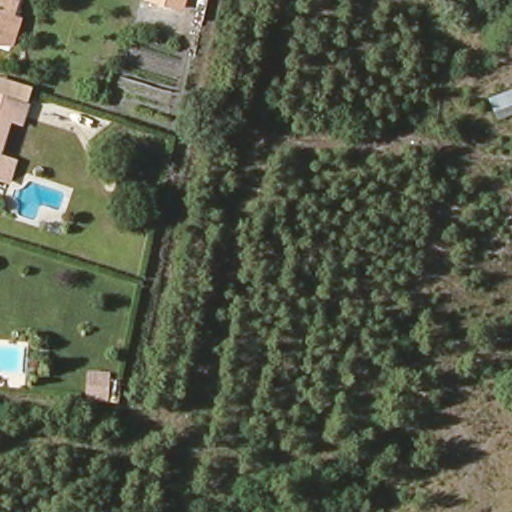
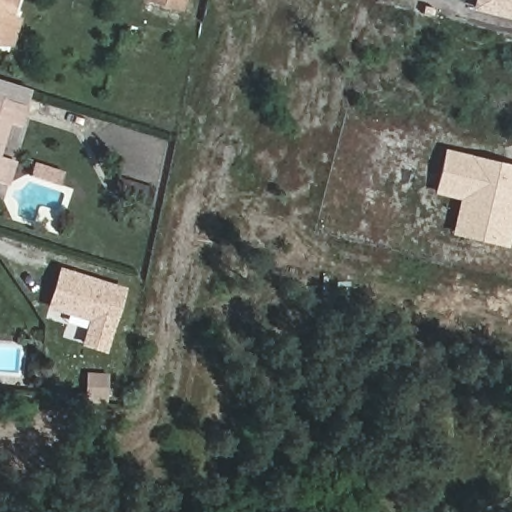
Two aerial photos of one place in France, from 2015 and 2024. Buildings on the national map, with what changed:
unchanged [(0,38),(0,0),(13,0),(9,12),(18,15),(9,39),(0,38)]
unchanged [(160,0),(188,0),(185,8),(160,0)]
new [(474,0),(512,0),(512,19),(472,10),(474,0)]
unchanged [(26,108),(20,125),(8,122),(0,148),(0,100),(26,108)]
new [(450,235),(458,200),(433,194),(444,149),(512,166),(512,230),(508,247),(450,235)]
unchanged [(7,182),(0,180),(0,159),(13,163),(7,182)]
unchanged [(128,197),(115,194),(119,179),(132,182),(128,197)]
new [(106,353),(81,345),(87,322),(46,310),(58,267),(125,287),(106,353)]
unchanged [(105,401),(87,400),(88,375),(106,376),(105,401)]

